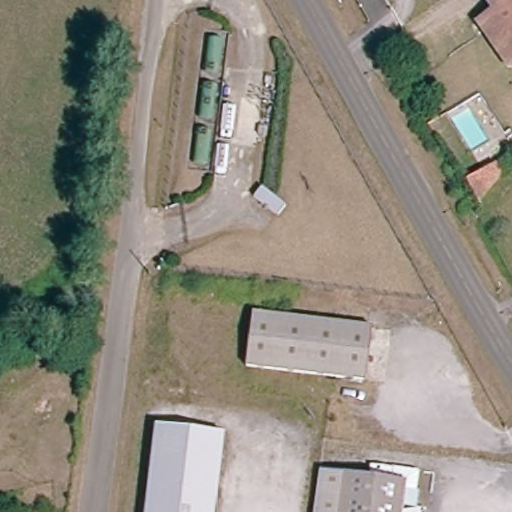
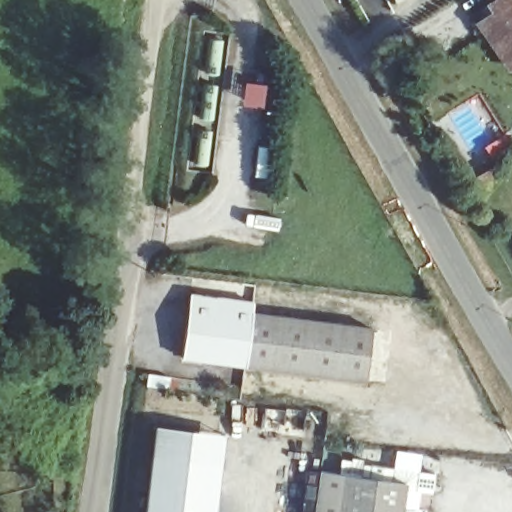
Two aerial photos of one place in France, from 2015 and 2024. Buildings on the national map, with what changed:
unchanged [(485,30),(501,18),(496,10),(510,0),(512,0),(512,67),(485,30)]
new [(253,312),(366,330),(249,320),(244,368),(182,359),(189,292),(254,300),(253,312)]
unchanged [(366,330),(360,380),(244,368),(249,320),(366,330)]
unchanged [(150,436),(216,440),(213,470),(148,464),(150,436)]
unchanged [(387,469),(387,457),(412,459),(410,478),(398,477),(395,512),(312,512),(317,463),(387,469)]
unchanged [(209,512),(143,512),(148,464),(213,470),(209,512)]

